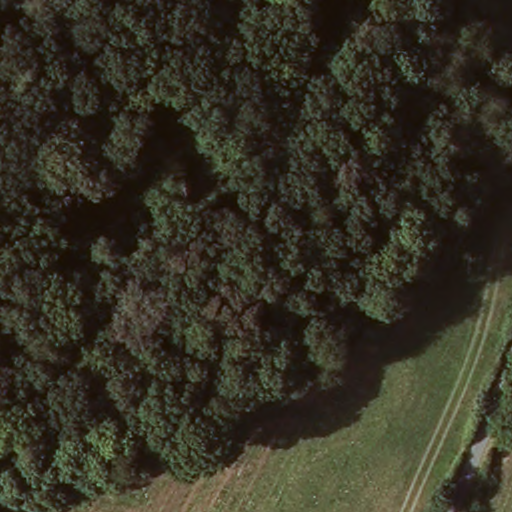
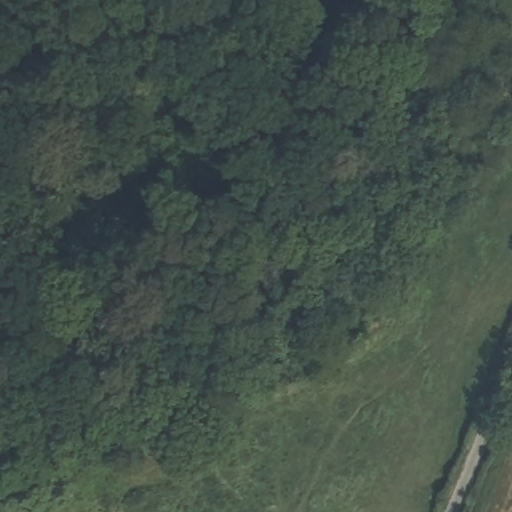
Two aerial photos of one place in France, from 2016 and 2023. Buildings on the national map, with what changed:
[]

